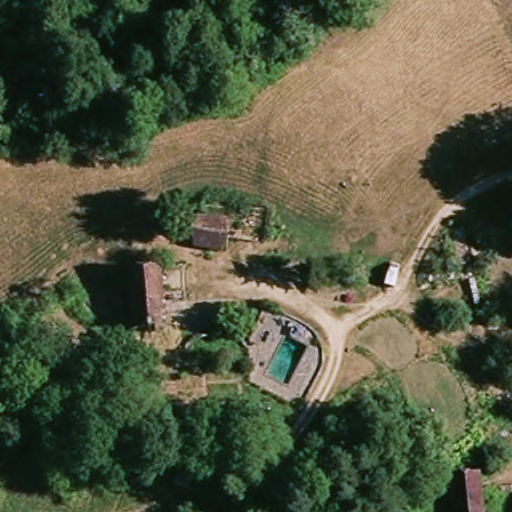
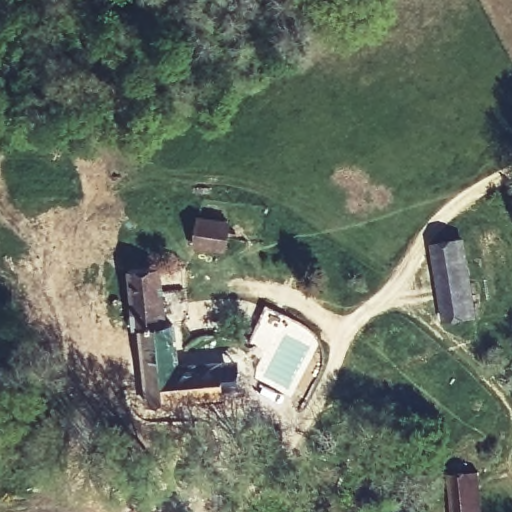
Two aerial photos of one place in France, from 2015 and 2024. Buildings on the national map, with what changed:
unchanged [(190,252),(195,216),(227,219),(223,255),(190,252)]
new [(479,319),(445,325),(433,245),(467,240),(479,319)]
unchanged [(161,326),(131,326),(128,272),(160,273),(161,326)]
unchanged [(300,325),(315,340),(318,352),(317,364),(297,403),(249,383),(252,369),(240,364),(265,309),(300,325)]
unchanged [(449,479),(476,475),(481,512),(452,512),(449,479)]

